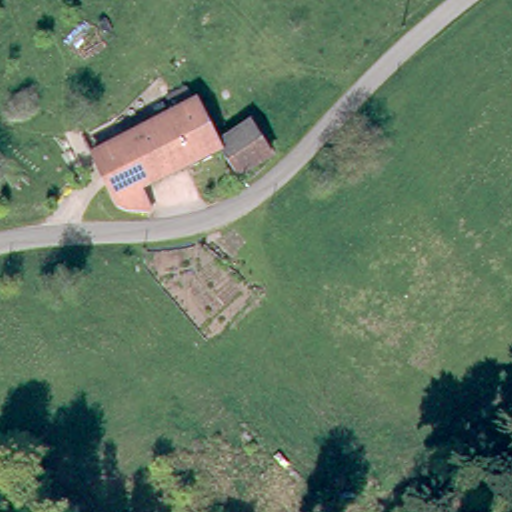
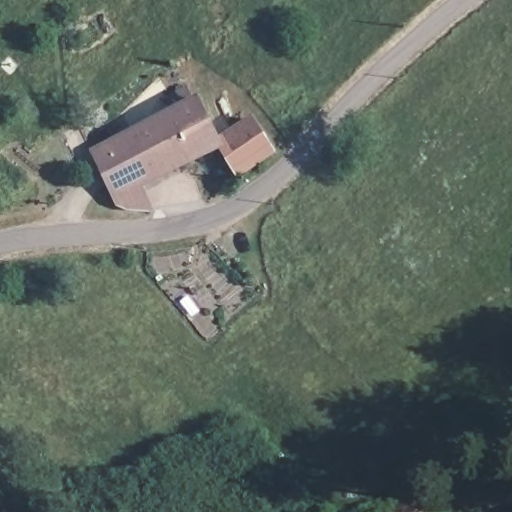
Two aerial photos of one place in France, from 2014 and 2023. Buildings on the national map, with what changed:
unchanged [(117,205),(110,199),(87,151),(127,131),(122,120),(142,110),(147,119),(170,108),(165,95),(179,89),(185,100),(192,97),(200,114),(213,108),(215,111),(227,134),(245,119),(268,150),(237,173),(215,145),(134,187),(137,213),(134,213),(125,209),(117,205)]

